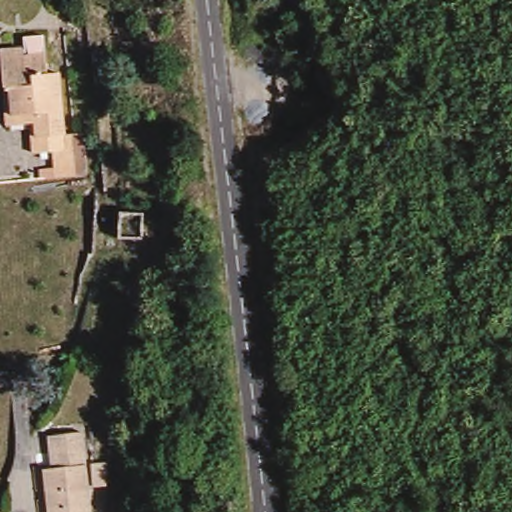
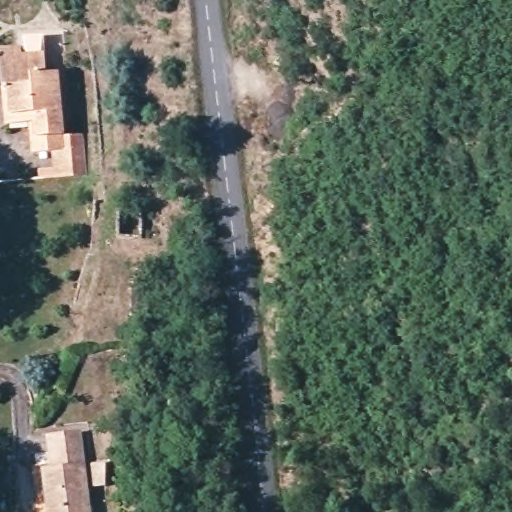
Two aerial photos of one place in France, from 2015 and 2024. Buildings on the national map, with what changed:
unchanged [(0,51),(20,49),(22,58),(42,56),(45,75),(55,74),(63,136),(64,143),(65,149),(53,150),(33,152),(30,123),(7,124),(2,88),(0,68),(0,51)]
unchanged [(82,134),(87,178),(38,182),(37,169),(54,167),(53,150),(65,149),(64,143),(63,136),(82,134)]
unchanged [(52,474),(48,439),(78,439),(82,473),(52,474)]
unchanged [(37,475),(52,474),(82,473),(86,512),(40,512),(37,475)]

